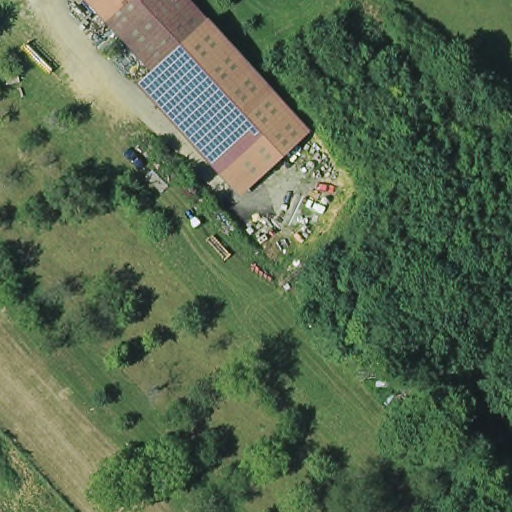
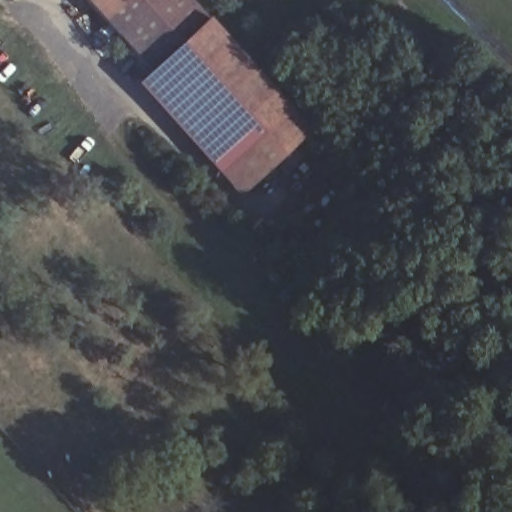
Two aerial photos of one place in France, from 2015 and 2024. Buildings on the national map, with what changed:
unchanged [(203,13),(208,18),(150,72),(84,0),(191,0),(203,13)]
unchanged [(254,184),(150,72),(208,18),(287,103),(312,130),(254,184)]

